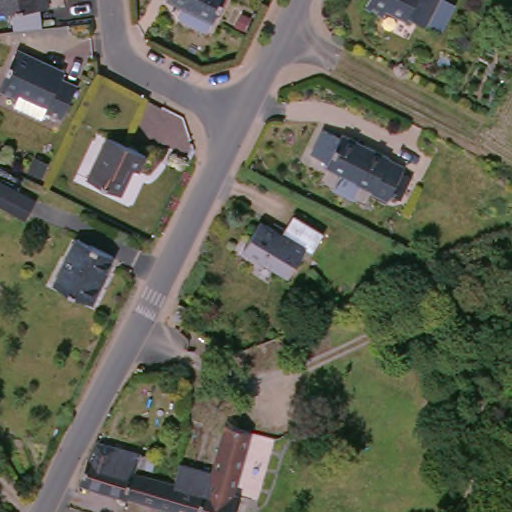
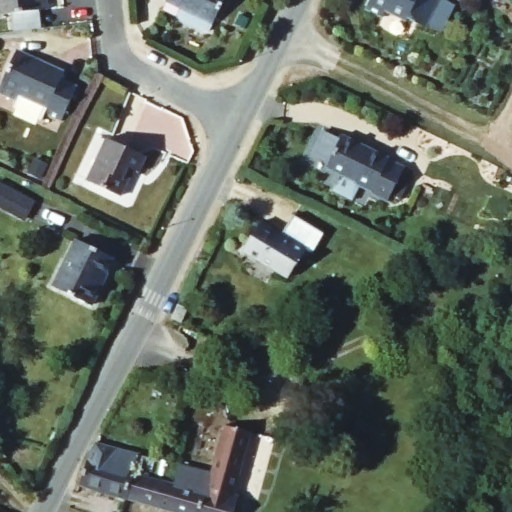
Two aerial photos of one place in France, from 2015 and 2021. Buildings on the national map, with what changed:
unchanged [(49,13),(41,14),(43,32),(15,35),(15,34),(13,16),(0,17),(0,0),(48,0),(49,13)]
unchanged [(209,30),(164,8),(166,4),(158,0),(224,0),(209,30)]
unchanged [(373,0),(441,0),(443,1),(426,32),(409,23),(408,25),(388,15),(384,21),(367,12),(373,0)]
unchanged [(58,84),(74,92),(72,97),(63,117),(59,126),(42,118),(44,112),(18,99),(14,105),(0,98),(0,86),(14,56),(61,78),(58,84)]
unchanged [(330,197),(338,181),(324,174),(326,170),(309,162),(321,138),(338,146),(340,142),(403,172),(386,209),(369,201),(370,199),(357,193),(349,207),(330,197)]
unchanged [(138,164),(130,179),(124,176),(110,203),(79,186),(101,145),(138,164)]
unchanged [(21,219),(0,208),(0,185),(30,201),(21,219)]
unchanged [(276,236),(287,216),(314,232),(302,252),(284,280),(240,254),(257,225),(276,236)]
unchanged [(112,267),(97,294),(100,296),(90,314),(53,294),(76,249),(112,267)]
unchanged [(169,323),(176,312),(184,316),(178,328),(169,323)]
unchanged [(224,431),(251,439),(231,500),(235,501),(232,512),(201,512),(206,498),(194,495),(174,490),(175,488),(179,469),(209,479),(224,431)]
unchanged [(152,464),(149,471),(145,470),(144,476),(138,474),(134,480),(126,505),(79,491),(86,467),(97,450),(152,464)]
unchanged [(134,480),(159,487),(161,486),(175,488),(174,490),(194,495),(206,498),(201,512),(149,512),(126,505),(134,480)]

